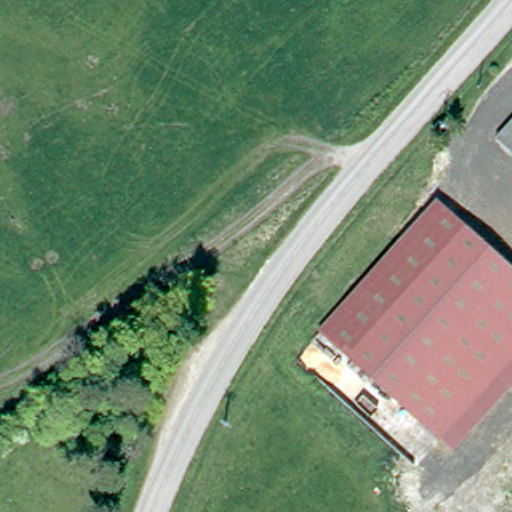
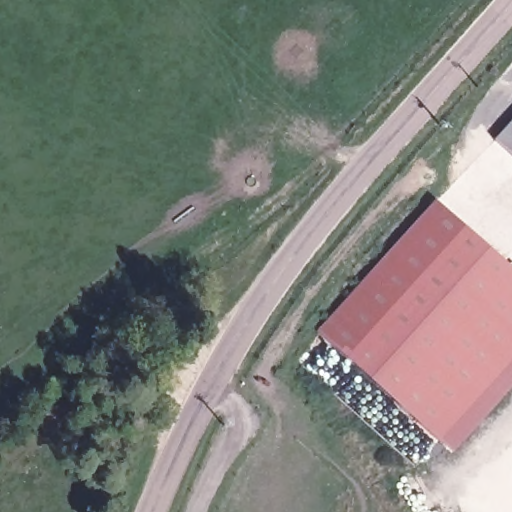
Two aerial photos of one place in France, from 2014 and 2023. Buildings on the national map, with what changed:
unchanged [(512,126),(512,151),(500,139),(512,126)]
unchanged [(322,330),(440,201),(512,267),(512,388),(455,451),(322,330)]

